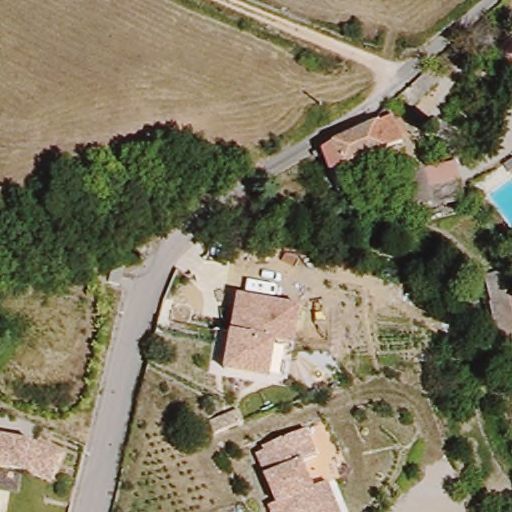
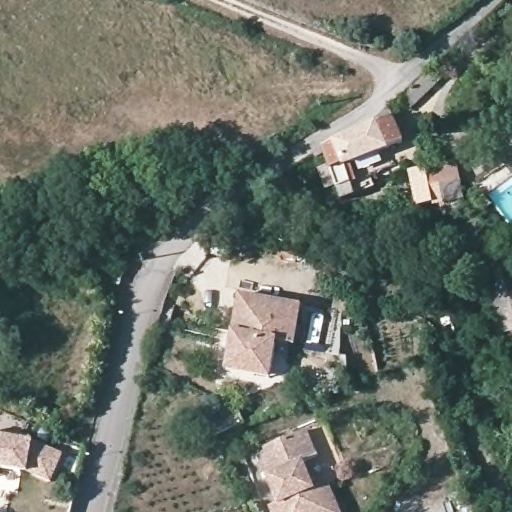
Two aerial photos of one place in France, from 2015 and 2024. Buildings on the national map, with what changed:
unchanged [(430,94),(411,110),(399,96),(425,72),(432,80),(430,94)]
unchanged [(403,144),(344,168),(355,195),(340,200),(336,187),(326,191),(318,171),(329,166),(322,150),(366,127),(376,123),(391,117),(403,144)]
unchanged [(431,168),(460,161),(469,200),(439,207),(438,204),(419,207),(412,170),(429,166),(431,168)]
unchanged [(483,276),(512,266),(512,333),(497,337),(483,276)]
unchanged [(259,376),(231,371),(230,377),(213,375),(220,330),(234,333),(240,295),(303,305),(298,337),(297,345),(280,342),(274,378),(259,376)]
unchanged [(301,462),(311,488),(326,482),(338,512),(269,512),(267,506),(275,502),(256,455),(264,451),(263,447),(304,430),(315,456),(301,462)]
unchanged [(33,438),(64,450),(53,478),(28,469),(0,465),(0,434),(33,438)]

